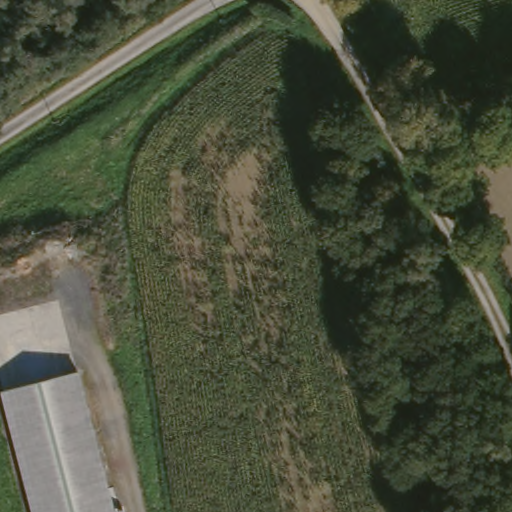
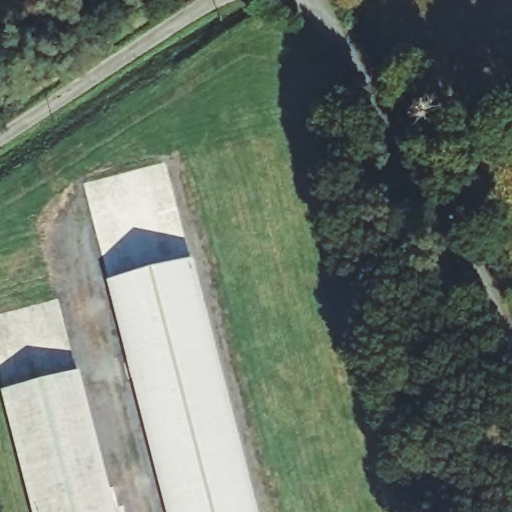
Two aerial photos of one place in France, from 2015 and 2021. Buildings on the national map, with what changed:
new [(106,283),(192,261),(257,512),(165,512),(106,283)]
unchanged [(78,372),(114,512),(31,512),(2,394),(78,372)]

